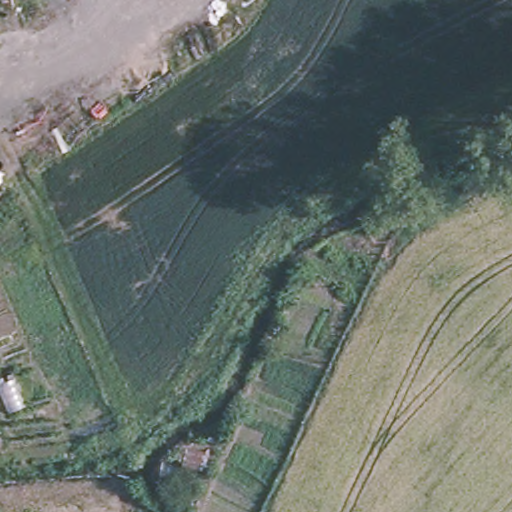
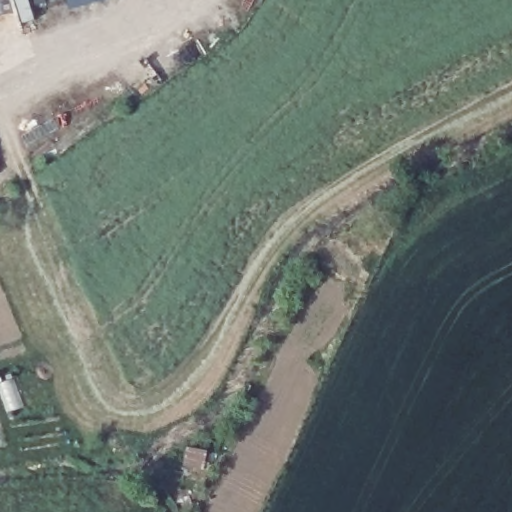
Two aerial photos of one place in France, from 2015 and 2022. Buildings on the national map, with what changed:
new [(71,10),(68,0),(104,0),(71,10)]

